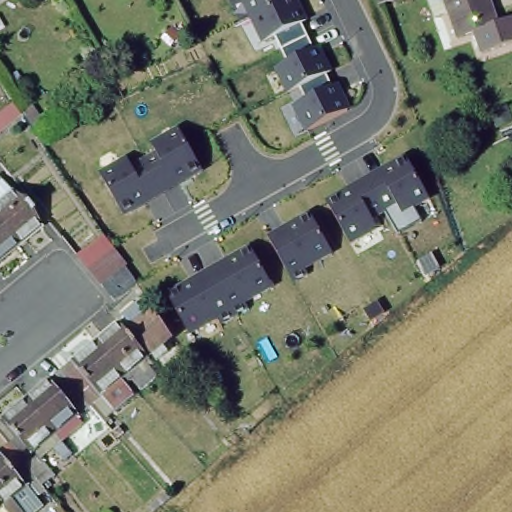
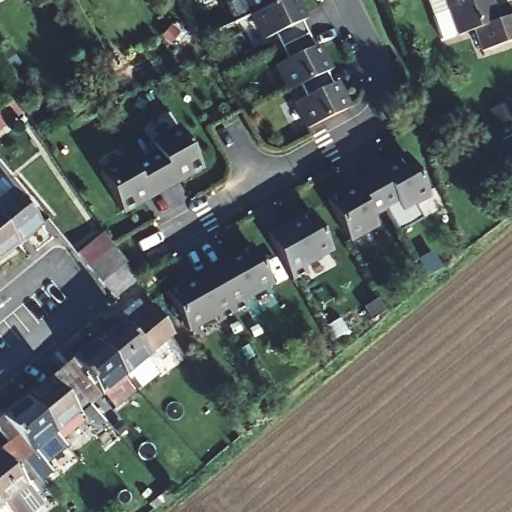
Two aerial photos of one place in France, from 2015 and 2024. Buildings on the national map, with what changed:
unchanged [(242,0),(291,0),(342,106),(302,126),(242,0)]
unchanged [(376,0),(384,0),(377,3),(376,0)]
unchanged [(490,0),(497,23),(457,36),(447,11),(432,16),(426,0),(490,0)]
unchanged [(8,93),(14,100),(22,113),(0,130),(0,99),(8,93)]
unchanged [(35,130),(20,109),(32,101),(46,123),(35,130)]
unchanged [(122,211),(96,172),(124,152),(134,164),(157,148),(150,137),(173,123),(199,167),(122,211)]
unchanged [(349,241),(325,202),(393,158),(421,197),(411,205),(417,215),(394,231),(380,208),(368,215),(372,228),(349,241)]
unchanged [(0,179),(10,190),(12,188),(42,224),(17,245),(0,225),(0,180),(0,179)]
unchanged [(329,251),(288,275),(265,235),(307,210),(329,251)]
unchanged [(0,259),(0,225),(17,245),(0,259)]
unchanged [(100,284),(87,268),(77,254),(102,234),(112,247),(124,264),(135,282),(113,299),(100,284)]
unchanged [(168,292),(244,248),(265,283),(190,329),(168,292)]
unchanged [(161,338),(167,345),(155,354),(150,348),(146,351),(125,324),(130,319),(121,309),(136,297),(145,308),(152,302),(170,330),(161,338)]
unchanged [(147,352),(145,354),(157,369),(139,384),(132,374),(128,377),(124,372),(94,335),(119,316),(125,324),(146,351),(147,352)]
unchanged [(121,374),(133,389),(102,414),(90,399),(60,364),(94,335),(124,372),(121,374)]
unchanged [(73,414),(79,421),(60,436),(25,393),(60,364),(90,399),(73,414)]
unchanged [(70,447),(62,454),(52,443),(40,454),(53,471),(42,481),(7,438),(0,430),(0,413),(25,393),(60,436),(70,447)]
unchanged [(23,508),(27,512),(11,512),(0,498),(0,443),(7,438),(42,481),(44,484),(35,492),(38,495),(23,508)]
unchanged [(152,511),(147,506),(165,491),(169,496),(152,511)]
unchanged [(11,512),(0,512),(0,498),(11,512)]

